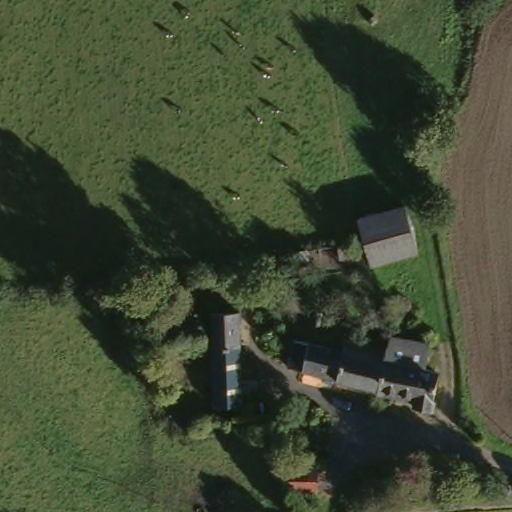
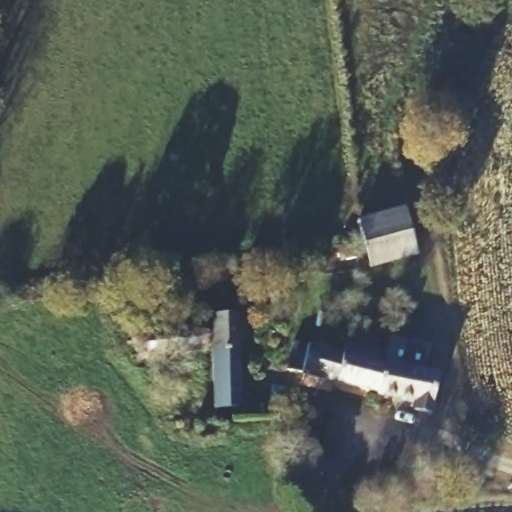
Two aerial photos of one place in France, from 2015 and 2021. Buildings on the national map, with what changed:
unchanged [(369,261),(355,215),(399,205),(416,251),(369,261)]
unchanged [(237,315),(241,351),(211,354),(211,351),(208,316),(237,315)]
unchanged [(428,373),(443,379),(433,414),(415,410),(417,402),(379,392),(386,364),(409,369),(414,339),(434,344),(428,373)]
unchanged [(349,352),(350,344),(383,353),(387,354),(386,364),(379,392),(304,372),(289,368),(297,341),(311,344),(349,354),(349,352)]
unchanged [(314,490),(284,490),(283,468),(314,468),(314,490)]

